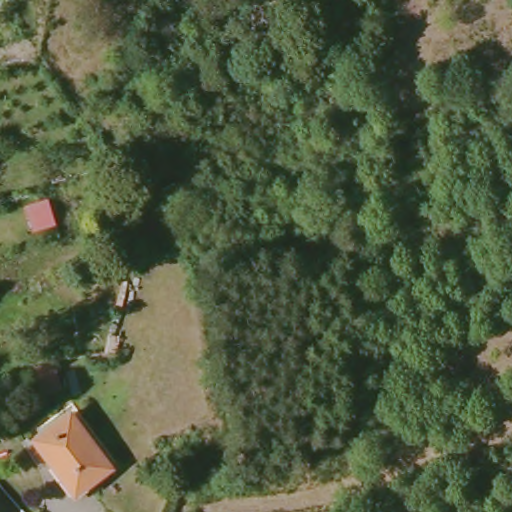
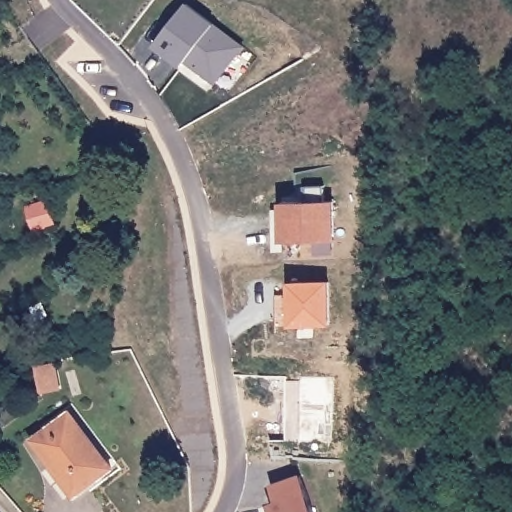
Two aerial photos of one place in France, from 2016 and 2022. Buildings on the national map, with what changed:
new [(186,4),(213,24),(243,45),(213,84),(183,61),(179,69),(153,47),(186,4)]
new [(270,209),(281,210),(280,202),(303,202),(304,187),(324,186),(324,202),(334,201),(334,242),(284,242),(284,252),(271,252),(270,209)]
new [(286,286),(324,285),(325,327),(286,328),(286,286)]
unchanged [(71,414),(111,468),(79,492),(68,476),(64,478),(35,440),(71,414)]
new [(279,497),(274,481),(302,470),(317,512),(276,512),(271,500),(279,497)]

